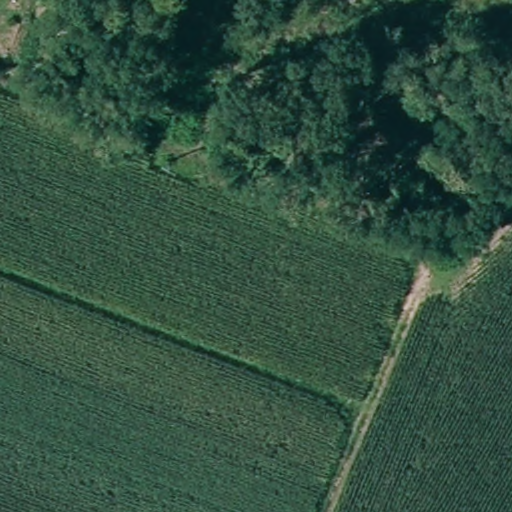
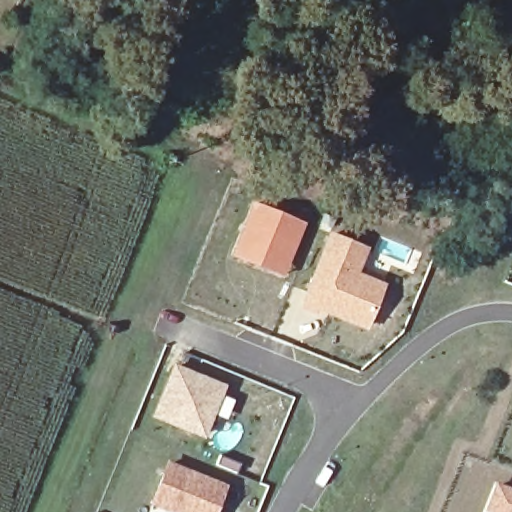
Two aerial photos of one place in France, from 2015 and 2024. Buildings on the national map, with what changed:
new [(305,222),(283,278),(231,256),(252,201),(305,222)]
new [(369,247),(358,272),(387,283),(368,331),(321,311),(319,316),(298,307),(329,231),(369,247)]
new [(226,385),(204,438),(151,416),(173,363),(226,385)]
new [(229,485),(218,512),(159,512),(150,508),(167,460),(229,485)]
new [(512,488),(512,512),(483,512),(495,481),(512,488)]

